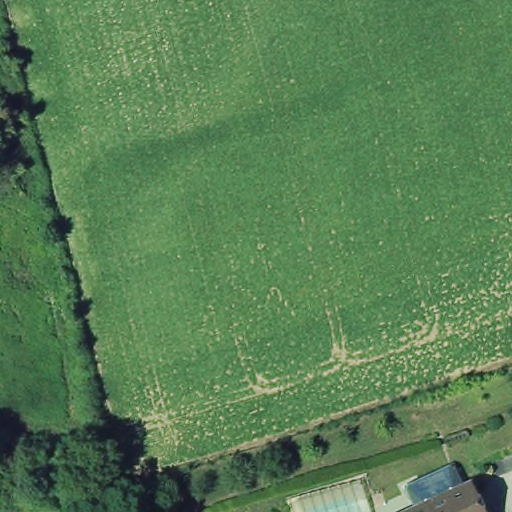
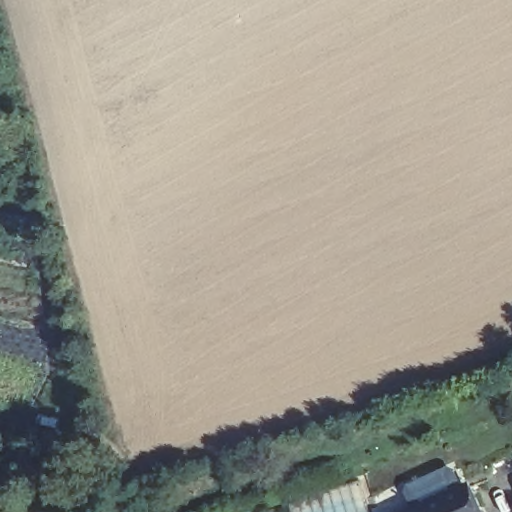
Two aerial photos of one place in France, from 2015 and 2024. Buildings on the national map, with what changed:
unchanged [(438,500),(471,486),(473,491),(481,512),(410,512),(438,500)]

